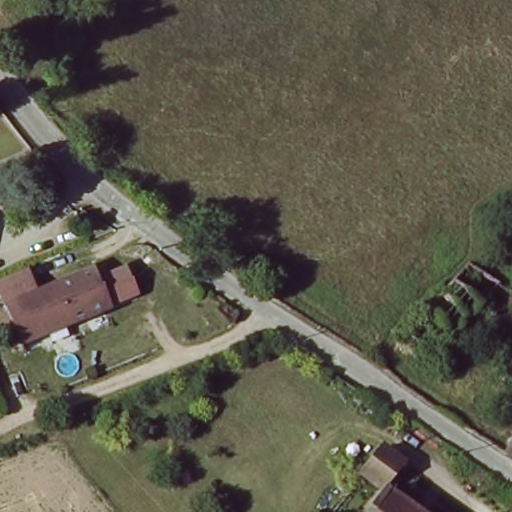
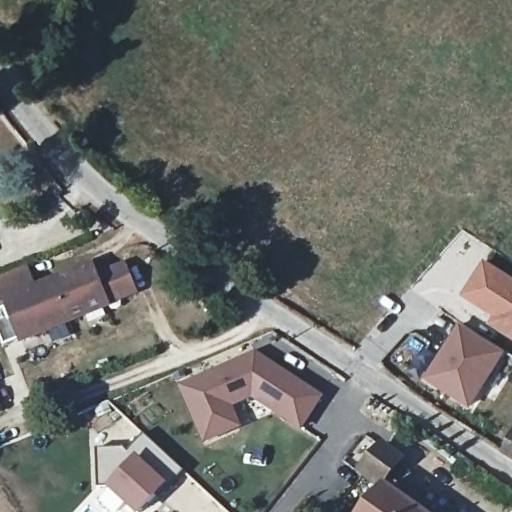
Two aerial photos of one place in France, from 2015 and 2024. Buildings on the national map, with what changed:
new [(512,340),(485,323),(491,314),(459,294),(483,257),(512,275),(512,340)]
unchanged [(55,286),(96,270),(100,278),(128,267),(142,297),(112,309),(70,326),(55,286)]
unchanged [(30,341),(12,298),(52,282),(55,286),(70,326),(30,341)]
new [(458,322),(504,351),(469,408),(423,381),(458,322)]
new [(183,388),(255,357),(320,397),(302,427),(273,410),(281,397),(271,390),(229,407),(237,426),(205,438),(183,388)]
unchanged [(512,441),(512,453),(507,450),(512,441)]
unchanged [(380,484),(421,512),(354,512),(376,487),(357,476),(385,443),(404,457),(380,484)]
new [(136,512),(131,512),(102,486),(132,454),(162,482),(136,512)]

